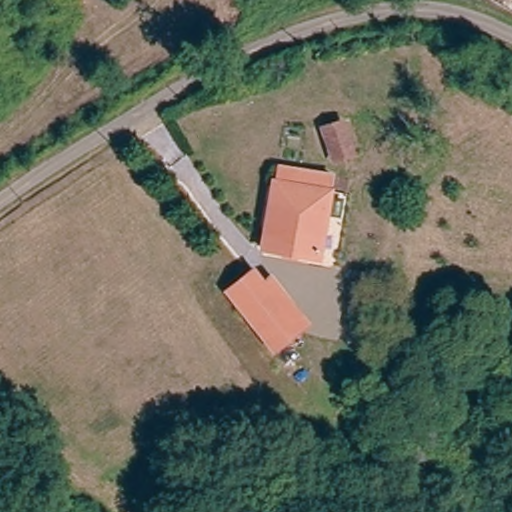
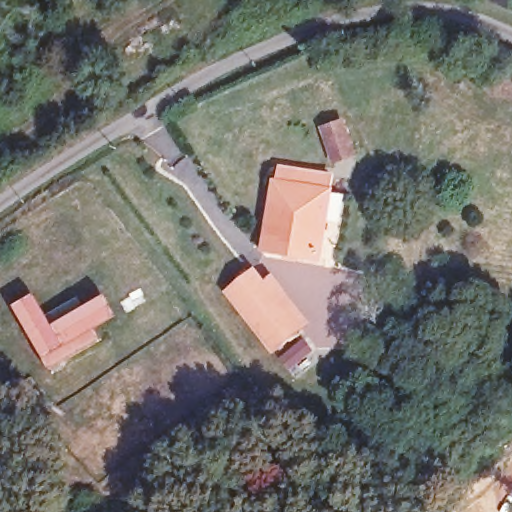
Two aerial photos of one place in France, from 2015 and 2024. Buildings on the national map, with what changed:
new [(359,158),(331,168),(318,128),(346,117),(359,158)]
unchanged [(266,251),(268,230),(274,186),(328,194),(318,259),(266,251)]
unchanged [(247,278),(261,271),(291,312),(257,333),(229,294),(247,278)]
new [(34,293),(53,322),(105,295),(118,318),(97,330),(102,340),(50,371),(12,306),(34,293)]
unchanged [(291,312),(304,333),(289,344),(273,356),(257,333),(291,312)]

